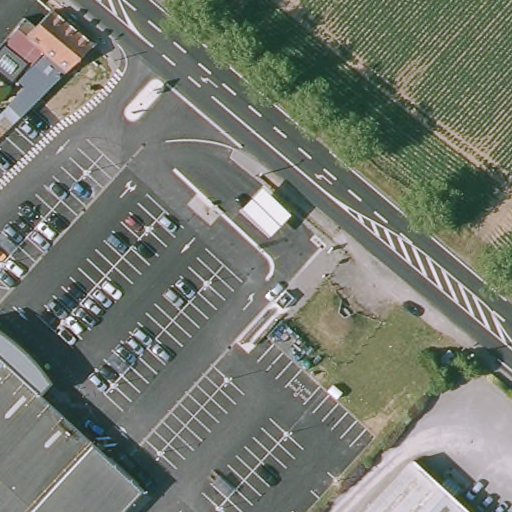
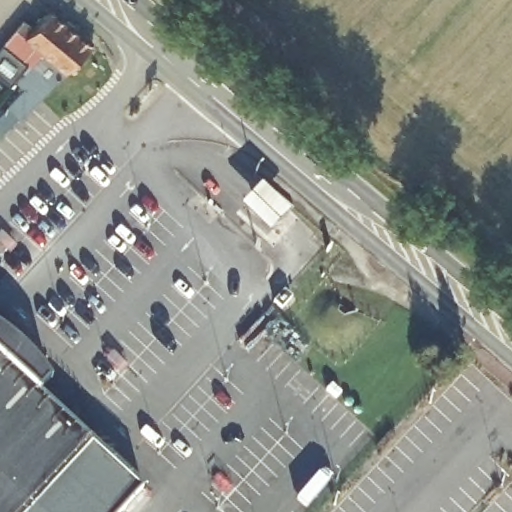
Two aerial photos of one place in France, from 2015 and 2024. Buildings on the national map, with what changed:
unchanged [(22,117),(11,107),(25,91),(20,85),(27,77),(25,74),(30,69),(7,45),(29,22),(35,28),(52,10),(95,45),(22,117)]
unchanged [(270,235),(240,208),(264,183),(291,212),(270,235)]
unchanged [(0,334),(15,347),(4,360),(0,364),(0,334)]
unchanged [(93,443),(30,512),(0,512),(0,364),(4,360),(93,443)]
unchanged [(144,490),(123,512),(30,512),(93,443),(144,490)]
demolished [(438,478),(453,492),(474,512),(362,512),(415,456),(438,478)]

